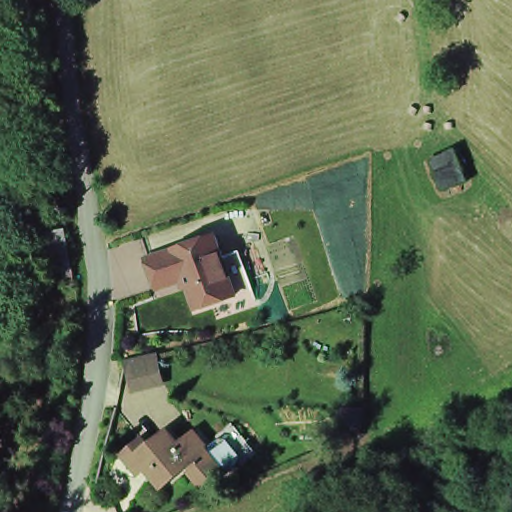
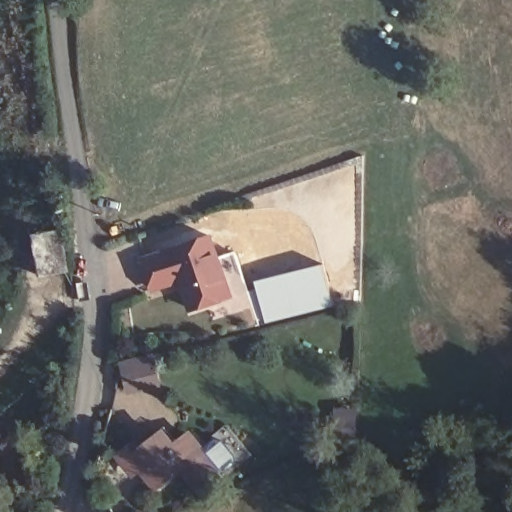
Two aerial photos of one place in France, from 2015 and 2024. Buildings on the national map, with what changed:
unchanged [(437,192),(423,156),(448,145),(463,180),(437,192)]
unchanged [(235,295),(188,310),(180,284),(150,292),(140,254),(165,247),(163,241),(214,228),(235,295)]
new [(323,262),(336,305),(264,323),(253,280),(323,262)]
unchanged [(155,389),(127,395),(120,366),(147,359),(155,389)]
unchanged [(356,438),(336,437),(336,408),(358,409),(356,438)]
unchanged [(230,420),(252,448),(222,474),(218,465),(200,449),(230,420)]
unchanged [(140,439),(145,445),(170,422),(200,449),(218,465),(188,488),(180,476),(158,492),(141,467),(131,473),(115,452),(140,439)]

